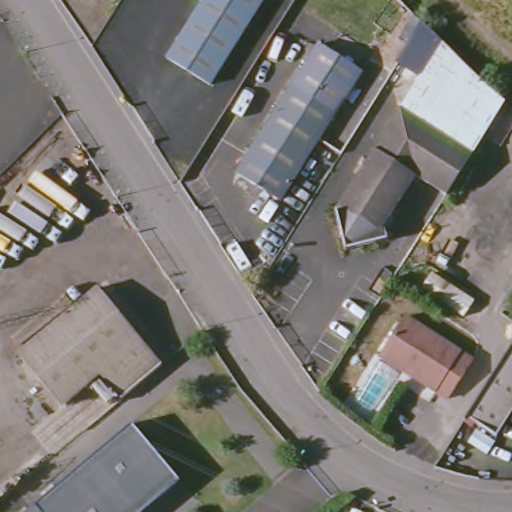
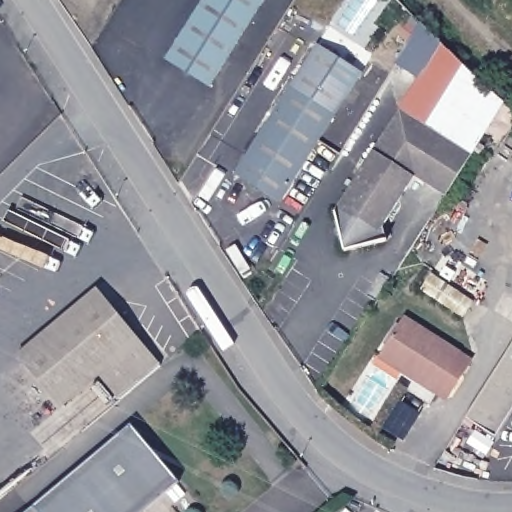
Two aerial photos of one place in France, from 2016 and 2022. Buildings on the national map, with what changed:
unchanged [(207,0),(256,0),(264,6),(211,91),(168,63),(207,0)]
unchanged [(443,45),(421,79),(399,61),(423,26),(443,45)]
unchanged [(325,128),(281,200),(235,170),(314,44),(359,72),(343,99),(353,105),(336,134),(325,128)]
unchanged [(445,135),(402,108),(421,79),(443,45),(480,82),(445,135)]
unchanged [(417,176),(387,219),(391,239),(346,252),(338,210),(402,108),(445,135),(480,82),(507,104),(449,197),(417,176)]
unchanged [(123,403),(102,378),(66,408),(21,356),(99,291),(165,369),(123,403)]
unchanged [(418,380),(421,375),(385,352),(408,317),(463,352),(439,392),(418,380)]
unchanged [(461,420),(512,340),(512,407),(491,440),(461,420)]
unchanged [(190,512),(32,512),(127,434),(190,512)]

